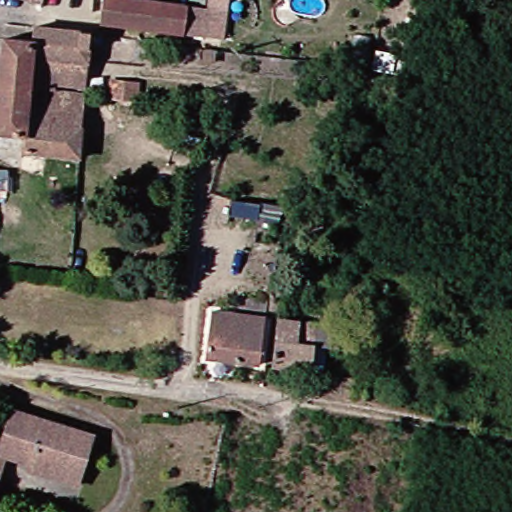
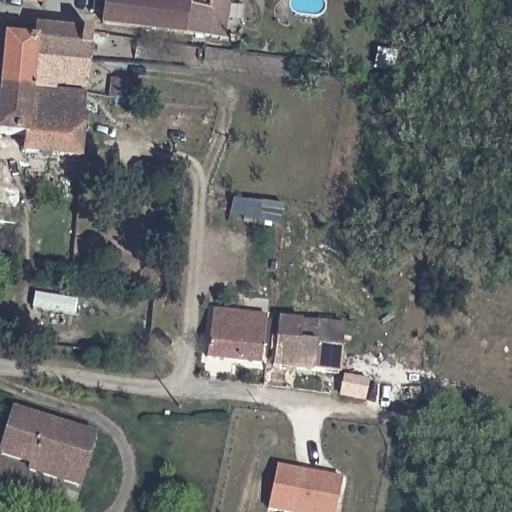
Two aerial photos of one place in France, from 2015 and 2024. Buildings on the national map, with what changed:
unchanged [(232,0),(231,8),(213,7),(210,34),(109,23),(112,0),(171,0),(213,5),(214,0),(232,0)]
unchanged [(91,60),(34,54),(37,40),(39,25),(94,34),(91,60)]
unchanged [(87,85),(55,82),(54,89),(36,87),(35,94),(88,100),(81,154),(28,150),(28,130),(1,127),(11,36),(37,40),(34,54),(91,60),(87,85)]
unchanged [(143,91),(117,89),(118,73),(144,76),(143,91)]
unchanged [(262,361),(207,357),(210,311),(265,316),(262,361)]
unchanged [(347,345),(320,343),(319,366),(281,364),(284,318),(348,323),(347,345)]
unchanged [(366,390),(343,387),(344,368),(369,370),(366,390)]
unchanged [(96,434),(78,480),(29,463),(32,454),(3,443),(18,405),(96,434)]
unchanged [(8,456),(0,480),(0,453),(8,456)]
new [(280,466),(345,480),(338,512),(296,512),(271,507),(280,466)]

